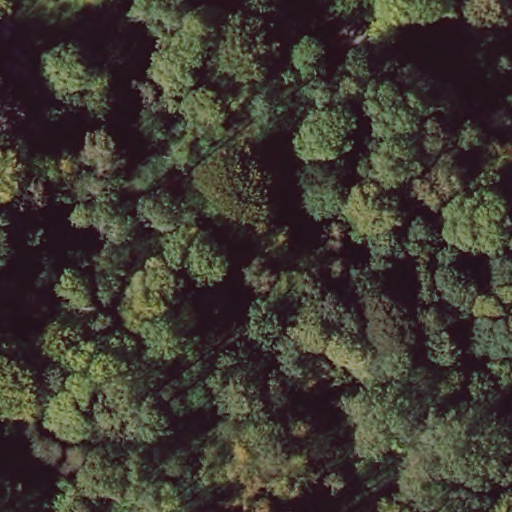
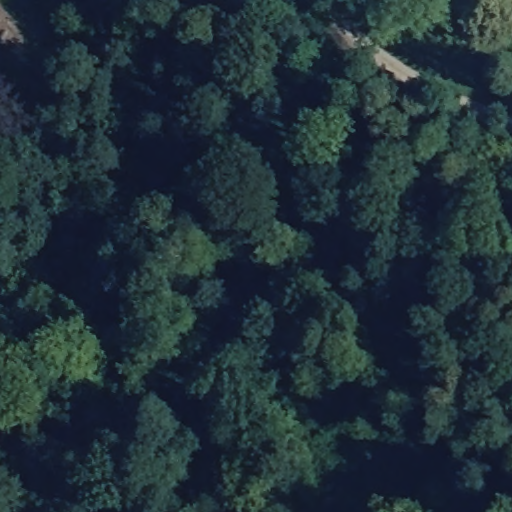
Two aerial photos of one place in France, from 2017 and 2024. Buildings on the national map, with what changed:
unchanged [(7,44),(0,55),(0,40),(7,44)]

